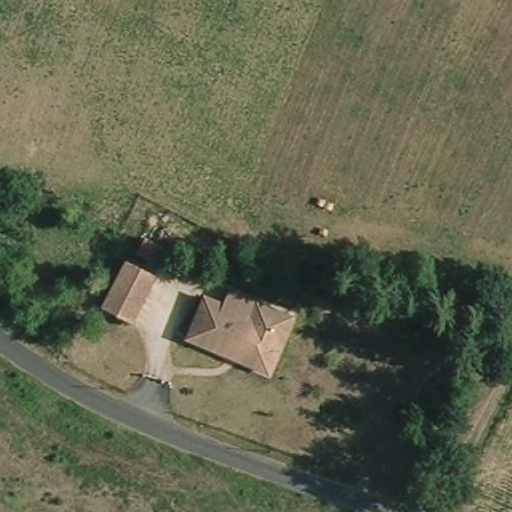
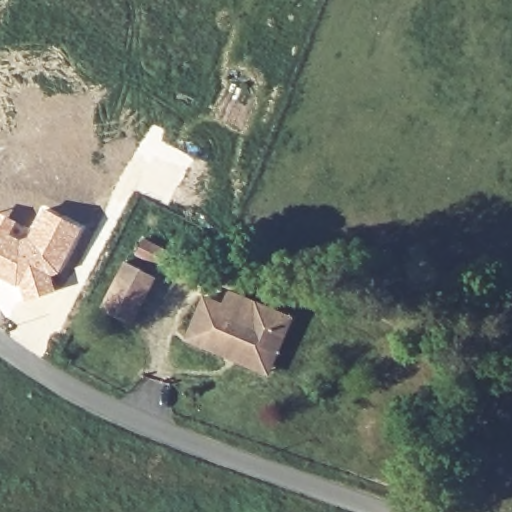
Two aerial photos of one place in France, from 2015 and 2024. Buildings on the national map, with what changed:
new [(42,206),(84,227),(60,271),(56,275),(52,276),(56,290),(27,299),(21,288),(0,277),(0,214),(29,228),(42,206)]
new [(141,236),(174,252),(166,267),(133,254),(141,236)]
unchanged [(127,261),(157,276),(132,322),(103,308),(127,261)]
unchanged [(188,338),(206,297),(224,304),(229,290),(257,302),(292,315),(271,367),(269,372),(227,355),(188,338)]

